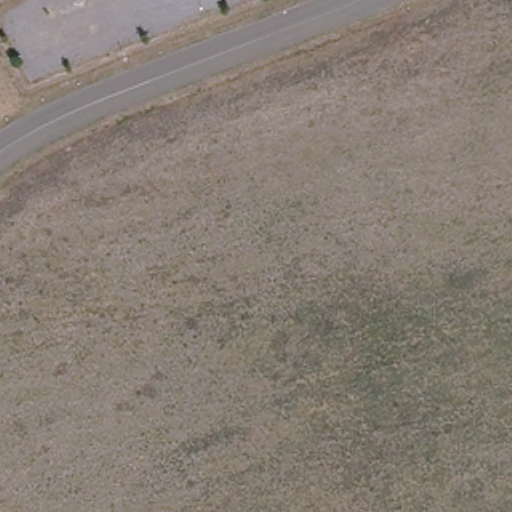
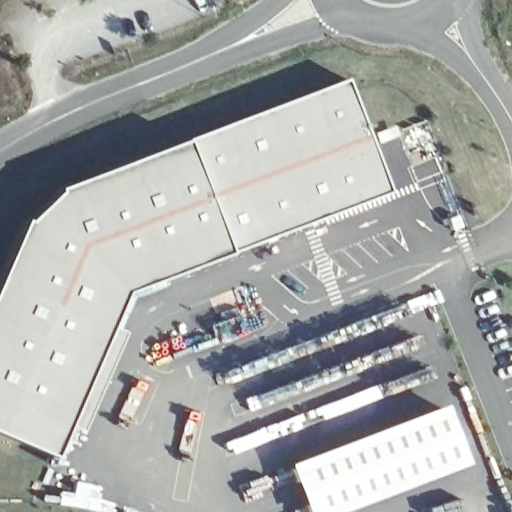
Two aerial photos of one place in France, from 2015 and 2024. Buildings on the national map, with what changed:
new [(227,248),(229,253),(123,290),(107,327),(123,332),(82,430),(68,421),(53,456),(0,433),(0,273),(23,221),(27,222),(57,192),(55,189),(185,141),(183,139),(345,80),(387,192),(227,248)]
new [(469,464),(342,512),(306,512),(287,465),(445,404),(469,464)]

